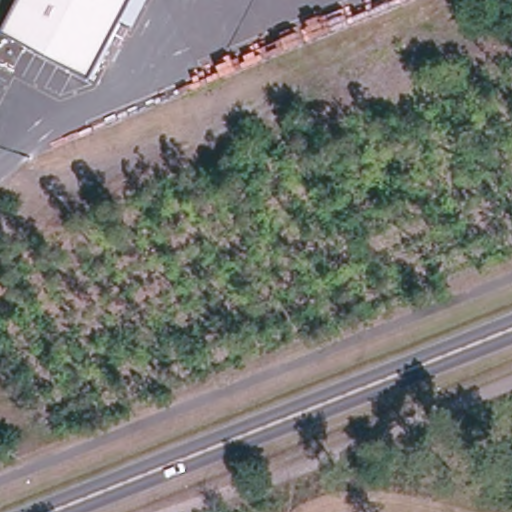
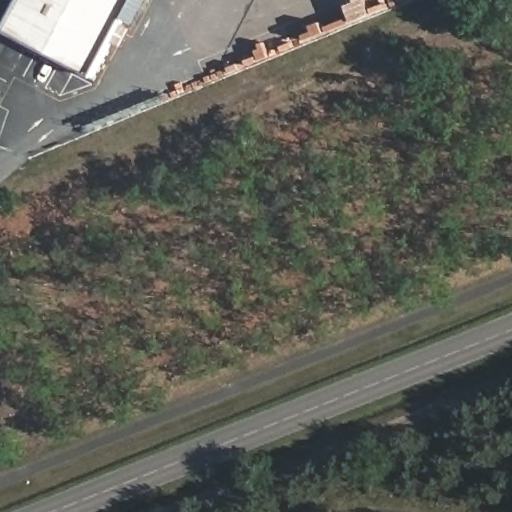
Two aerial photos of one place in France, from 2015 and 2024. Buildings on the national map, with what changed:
unchanged [(131,21),(122,16),(92,75),(2,28),(17,0),(131,0),(140,5),(131,21)]

